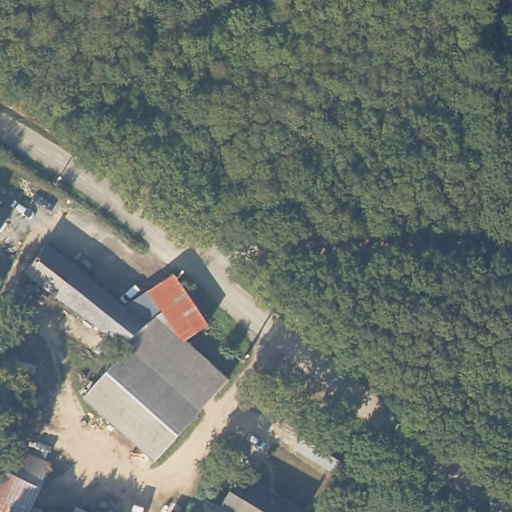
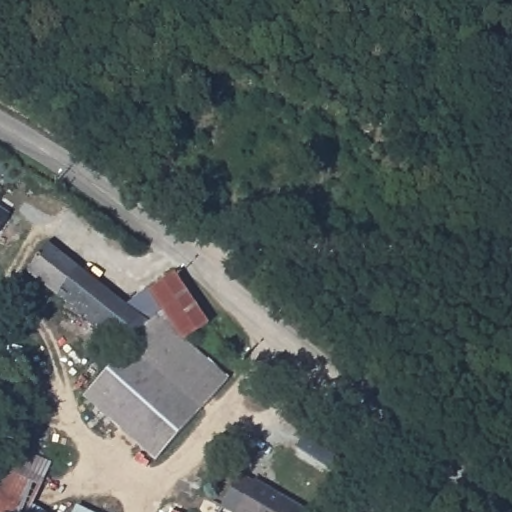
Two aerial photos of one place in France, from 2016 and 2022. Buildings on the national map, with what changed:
unchanged [(50,244),(124,300),(178,269),(213,318),(179,338),(225,377),(161,458),(85,403),(116,364),(95,352),(105,331),(27,271),(50,244)]
unchanged [(345,455),(332,475),(291,446),(304,429),(345,455)]
unchanged [(8,437),(56,464),(31,506),(42,512),(0,512),(0,449),(8,437)]
unchanged [(255,476),(303,511),(303,512),(234,512),(233,511),(236,508),(219,497),(238,469),(252,480),(255,476)]
unchanged [(84,512),(70,512),(73,507),(84,512)]

